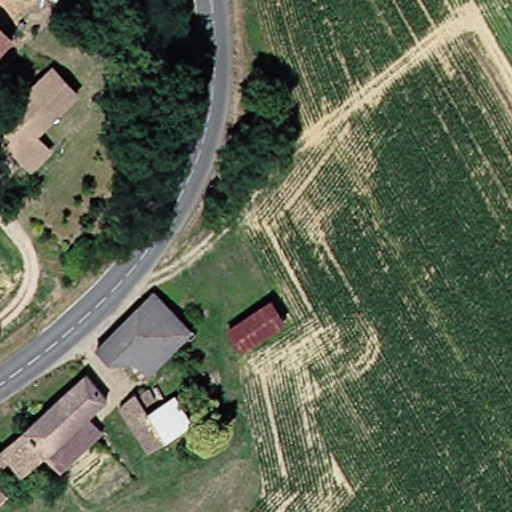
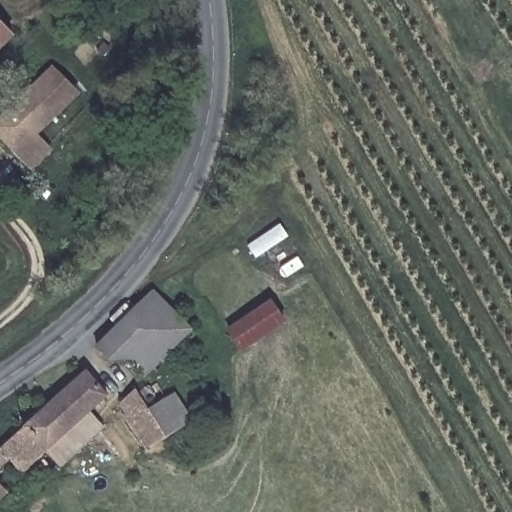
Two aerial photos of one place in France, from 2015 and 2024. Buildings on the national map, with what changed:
unchanged [(0,32),(5,37),(0,41),(0,32)]
unchanged [(0,98),(4,102),(46,63),(71,90),(30,127),(45,143),(22,164),(0,141),(0,98)]
unchanged [(100,364),(86,349),(143,293),(180,334),(135,376),(121,359),(100,364)]
unchanged [(237,349),(224,330),(268,300),(281,320),(237,349)]
unchanged [(170,393),(187,415),(150,443),(138,435),(123,421),(110,406),(140,384),(148,396),(139,403),(145,411),(170,393)]

